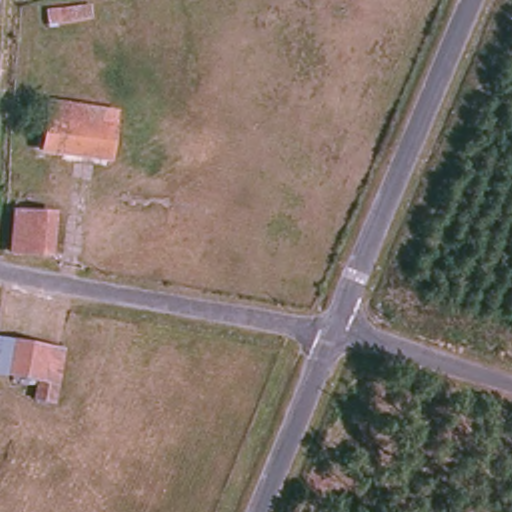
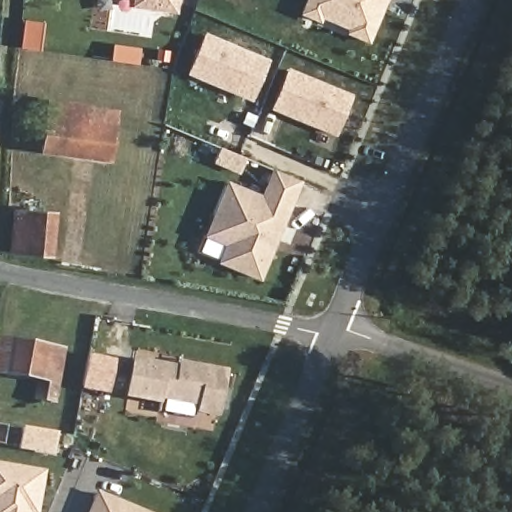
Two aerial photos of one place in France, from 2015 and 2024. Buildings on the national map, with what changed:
new [(180,0),(177,15),(135,9),(135,4),(134,0),(180,0)]
new [(345,35),(347,29),(322,19),(320,24),(298,15),(304,0),(386,0),(368,44),(345,35)]
demolished [(58,23),(57,26),(47,28),(47,9),(90,4),(91,18),(58,23)]
new [(200,35),(265,64),(249,100),(184,71),(200,35)]
new [(283,70),(350,99),(333,135),(267,106),(283,70)]
unchanged [(119,107),(109,159),(43,150),(52,97),(119,107)]
new [(254,280),(214,264),(222,245),(201,236),(205,226),(221,192),(255,206),(271,170),(297,182),(272,240),(267,249),(254,280)]
unchanged [(55,216),(47,254),(15,249),(23,210),(55,216)]
unchanged [(29,394),(33,379),(0,373),(0,335),(62,345),(53,399),(29,394)]
new [(85,358),(110,362),(105,392),(80,387),(85,358)]
new [(132,361),(175,369),(176,364),(222,373),(212,417),(194,413),(195,406),(159,398),(157,403),(125,396),(132,361)]
new [(33,512),(0,512),(0,466),(40,474),(33,512)]
new [(95,494),(138,512),(86,512),(95,494)]

